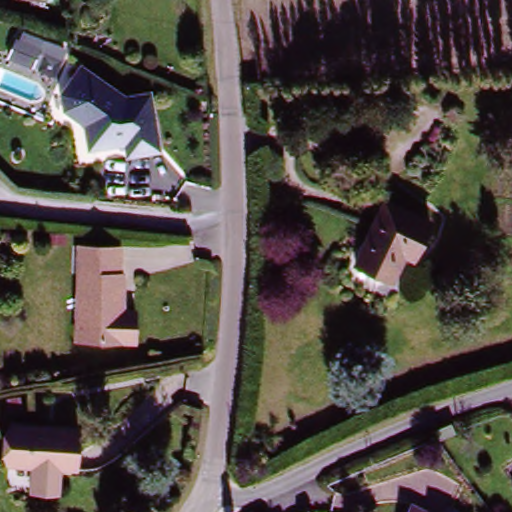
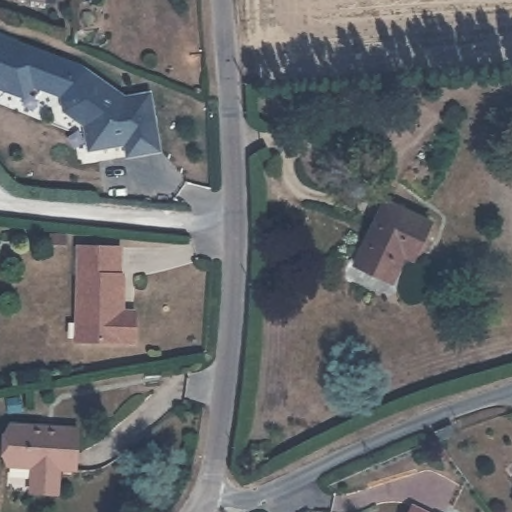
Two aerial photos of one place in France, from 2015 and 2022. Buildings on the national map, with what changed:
unchanged [(45,2),(11,0),(45,0),(45,2)]
unchanged [(10,57),(17,40),(26,44),(30,35),(42,41),(39,49),(32,66),(10,57)]
unchanged [(55,74),(40,67),(46,52),(62,59),(55,74)]
unchanged [(159,145),(128,151),(126,139),(90,145),(86,120),(65,105),(62,89),(82,62),(126,93),(150,89),(159,145)]
unchanged [(410,260),(400,255),(387,285),(350,266),(382,201),(427,222),(410,260)]
unchanged [(65,245),(50,244),(51,233),(66,234),(65,245)]
unchanged [(112,310),(126,311),(125,342),(66,340),(69,246),(111,248),(110,275),(114,275),(112,310)]
unchanged [(31,491),(31,485),(32,466),(10,465),(12,423),(77,427),(75,469),(60,468),(59,487),(58,493),(31,491)]
unchanged [(449,435),(442,440),(437,435),(445,430),(449,435)]
unchanged [(429,512),(408,512),(412,504),(429,512)]

